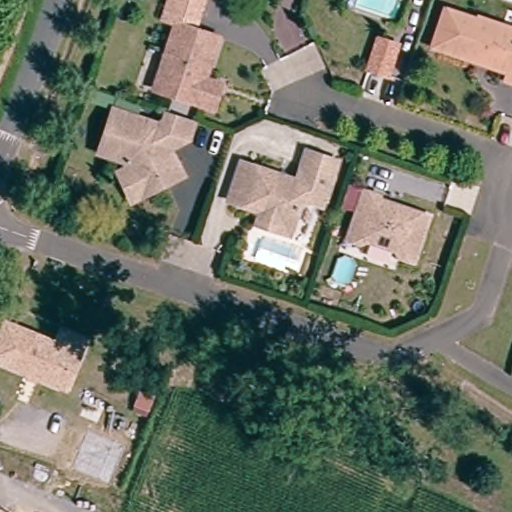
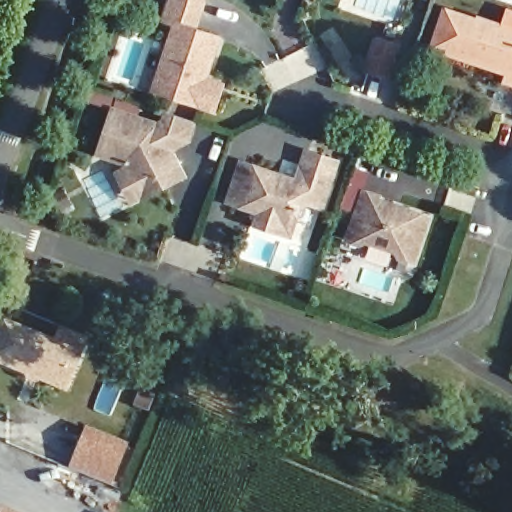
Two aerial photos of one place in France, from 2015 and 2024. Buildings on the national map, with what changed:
unchanged [(154,88),(172,24),(162,20),(168,0),(206,0),(199,24),(220,32),(207,72),(227,78),(219,108),(154,88)]
unchanged [(508,69),(477,59),(432,45),(445,7),(478,18),(479,15),(512,26),(512,79),(506,76),(508,69)]
unchanged [(119,172),(132,165),(129,158),(97,149),(111,109),(154,120),(162,117),(167,106),(207,120),(204,130),(182,142),(189,156),(196,169),(171,180),(145,192),(131,199),(119,172)]
unchanged [(310,200),(295,205),(292,221),(276,228),(253,221),(256,213),(227,202),(240,163),(295,179),(301,161),(305,148),(331,157),(327,171),(317,202),(310,200)]
unchanged [(351,224),(361,192),(377,197),(376,204),(392,210),(397,208),(428,219),(421,246),(405,241),(365,228),(351,224)]
unchanged [(69,389),(54,382),(0,359),(0,327),(4,318),(55,340),(62,324),(73,329),(75,330),(86,335),(78,353),(82,345),(89,347),(69,389)]
demolished [(128,411),(114,405),(120,391),(134,396),(128,411)]
unchanged [(147,414),(132,409),(138,394),(152,400),(147,414)]
new [(131,445),(114,485),(70,467),(87,427),(131,445)]
unchanged [(0,512),(0,509),(5,512),(0,512)]

